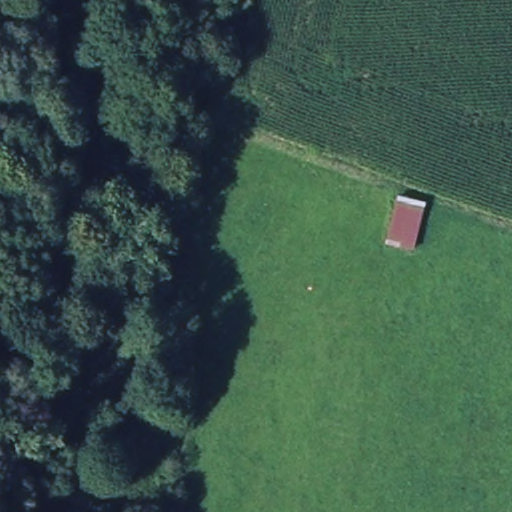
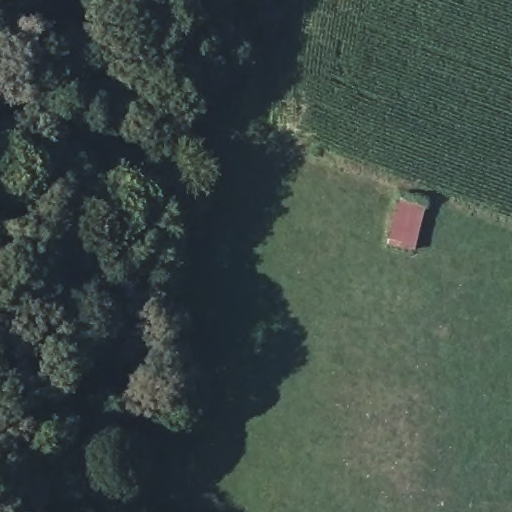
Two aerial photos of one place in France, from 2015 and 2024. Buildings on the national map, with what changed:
unchanged [(426,205),(415,248),(388,240),(398,197),(426,205)]

